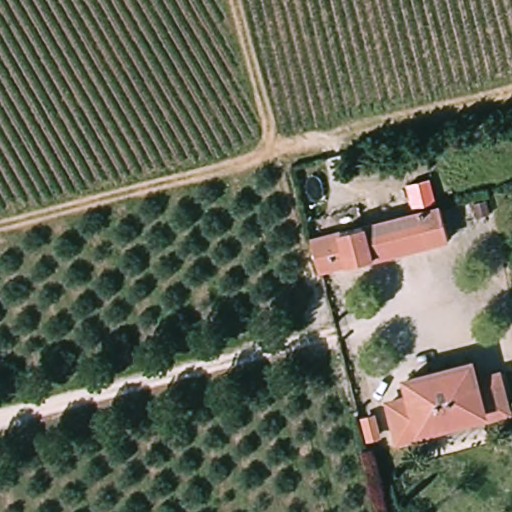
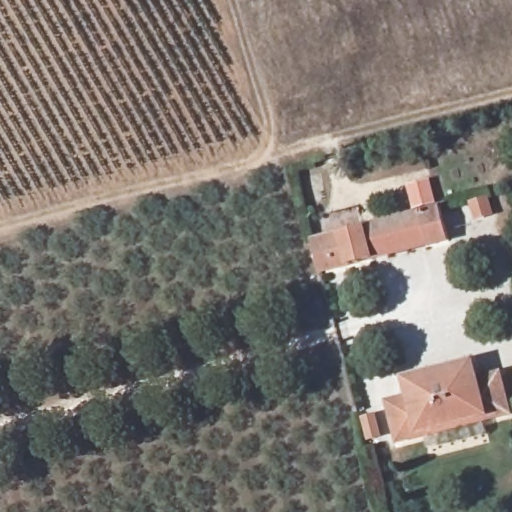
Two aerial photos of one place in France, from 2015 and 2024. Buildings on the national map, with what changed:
unchanged [(407,187),(429,182),(435,206),(445,242),(317,275),(308,239),(414,212),(407,187)]
unchanged [(404,395),(400,376),(472,358),(477,376),(499,371),(511,417),(394,446),(383,400),(404,395)]

